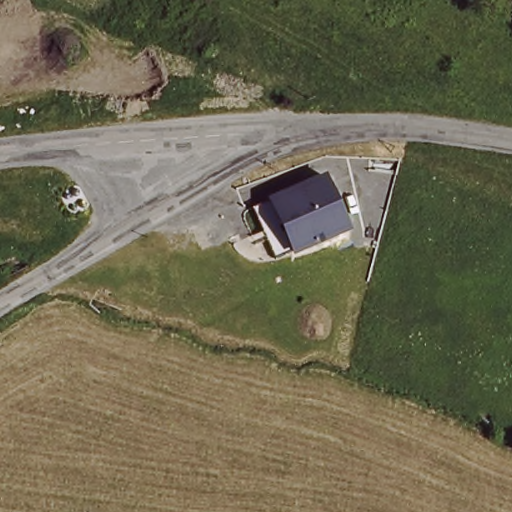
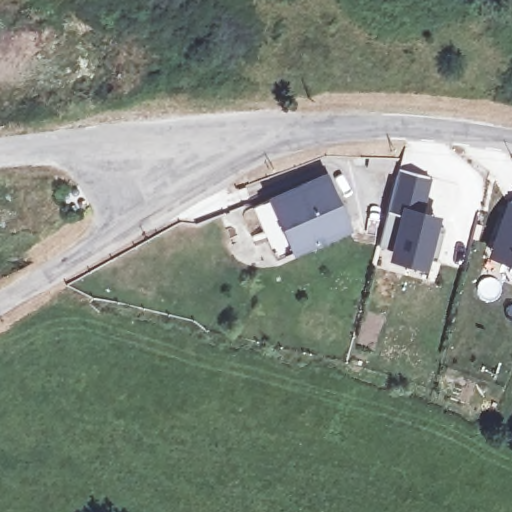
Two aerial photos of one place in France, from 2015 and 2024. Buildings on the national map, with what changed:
new [(389,211),(399,170),(433,178),(425,210),(441,214),(438,226),(445,229),(437,261),(431,259),(428,270),(389,259),(392,249),(380,246),(389,211)]
unchanged [(320,176),(344,229),(289,253),(266,201),(320,176)]
new [(512,201),(512,202),(512,263),(508,261),(491,255),(494,247),(512,201)]

